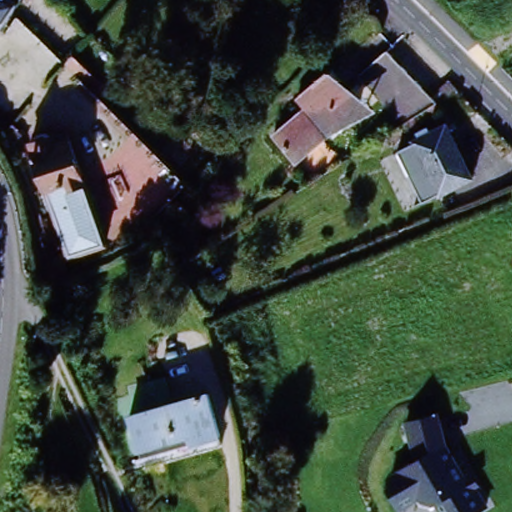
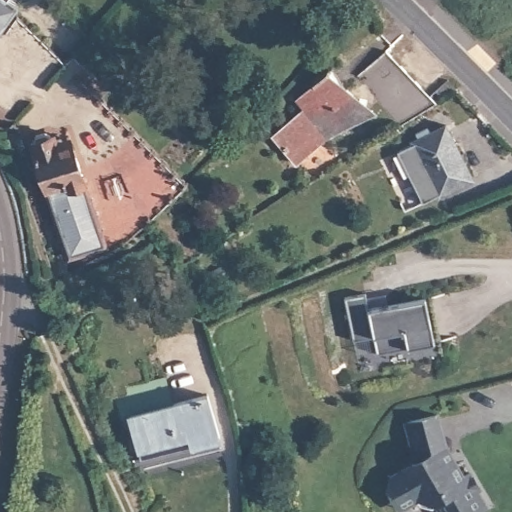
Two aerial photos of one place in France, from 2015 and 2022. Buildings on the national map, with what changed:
unchanged [(18,2),(0,29),(0,0),(16,0),(18,2)]
unchanged [(361,75),(383,52),(437,102),(405,121),(361,75)]
unchanged [(301,93),(312,84),(312,81),(332,62),(335,66),(332,68),(362,103),(332,130),(332,128),(308,102),(301,93)]
unchanged [(332,128),(300,156),(277,130),(308,102),(332,128)]
unchanged [(397,150),(412,142),(411,139),(418,136),(416,130),(427,125),(430,131),(445,123),(472,176),(438,193),(425,167),(410,174),(397,150)]
unchanged [(50,198),(32,146),(36,144),(39,138),(48,135),(54,139),(57,138),(60,145),(72,141),(102,226),(108,246),(71,259),(50,198)]
new [(371,299),(373,315),(430,306),(437,351),(380,360),(377,343),(357,346),(350,303),(371,299)]
unchanged [(164,497),(150,447),(133,449),(123,410),(209,389),(218,433),(225,480),(164,497)]
unchanged [(448,445),(465,476),(472,472),(483,490),(482,493),(491,508),(485,512),(434,512),(416,506),(404,512),(398,512),(393,506),(385,490),(390,474),(416,464),(402,423),(438,413),(448,445)]

